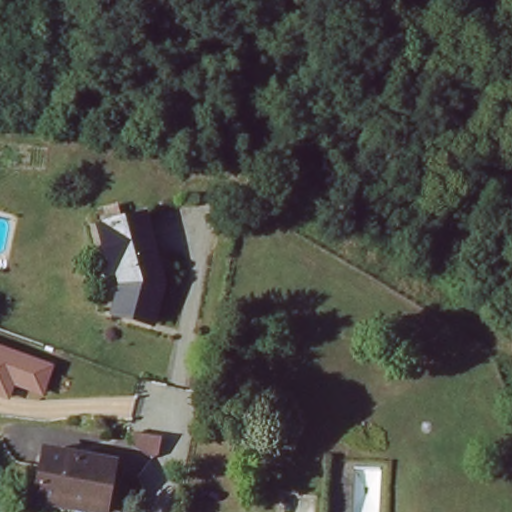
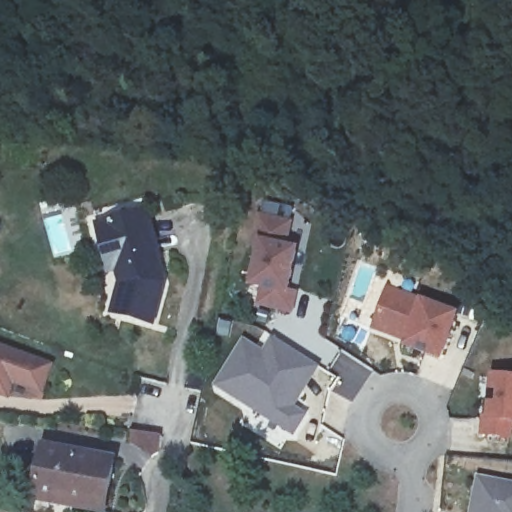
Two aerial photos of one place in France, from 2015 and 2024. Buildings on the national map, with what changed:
unchanged [(152,216),(163,285),(156,305),(151,323),(112,310),(115,298),(120,281),(116,257),(109,257),(105,224),(152,216)]
new [(294,225),(288,249),(299,252),(291,292),(297,293),(294,310),(264,302),(266,287),(256,285),(265,245),(260,242),(265,218),(294,225)]
new [(459,316),(443,357),(409,345),(411,340),(376,327),(391,289),(459,316)]
new [(265,352),(274,338),(322,370),(297,407),(310,416),(296,438),(215,388),(243,339),(265,352)]
unchanged [(41,396),(13,386),(8,400),(0,397),(0,345),(53,365),(41,396)]
unchanged [(193,373),(208,377),(205,397),(188,392),(193,373)]
new [(490,420),(494,380),(512,381),(512,422),(511,422),(510,438),(483,436),(484,421),(490,420)]
unchanged [(156,460),(135,446),(138,434),(168,440),(163,457),(156,460)]
unchanged [(121,462),(110,506),(64,497),(63,503),(40,497),(53,447),(121,462)]
new [(512,484),(512,512),(469,512),(477,477),(512,484)]

